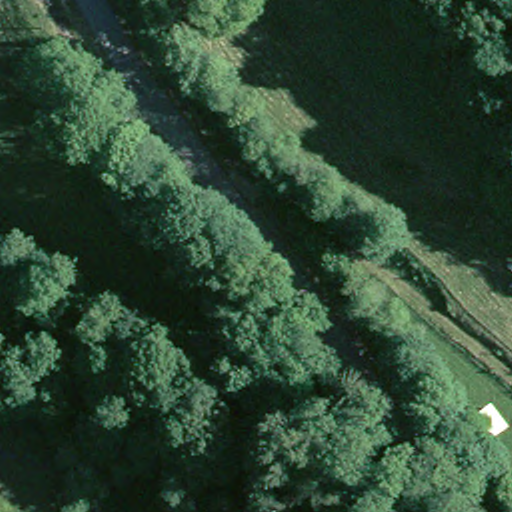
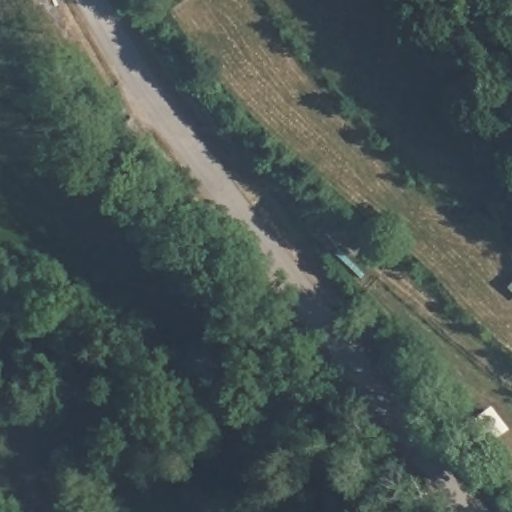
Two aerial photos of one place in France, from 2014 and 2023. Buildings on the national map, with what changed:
unchanged [(502,292),(512,278),(512,299),(502,292)]

